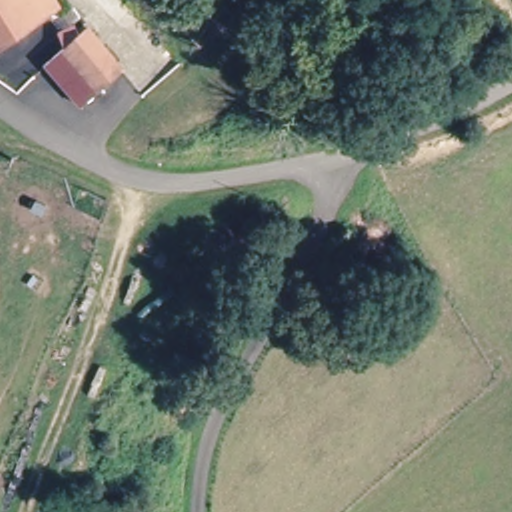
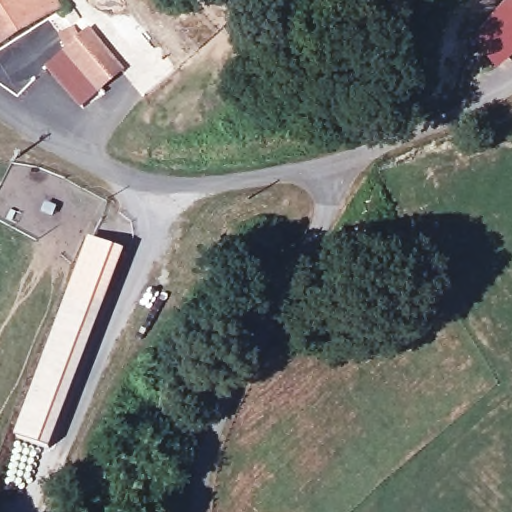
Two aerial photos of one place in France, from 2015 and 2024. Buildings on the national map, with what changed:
unchanged [(0,44),(0,0),(51,0),(56,7),(0,44)]
new [(498,72),(469,37),(501,0),(512,0),(512,61),(498,72)]
unchanged [(89,34),(128,74),(85,109),(47,65),(89,34)]
new [(126,250),(105,305),(67,292),(90,239),(126,250)]
new [(105,305),(51,448),(14,434),(67,292),(105,305)]

